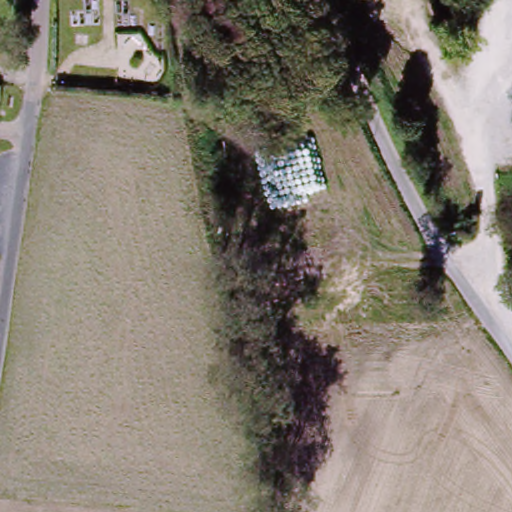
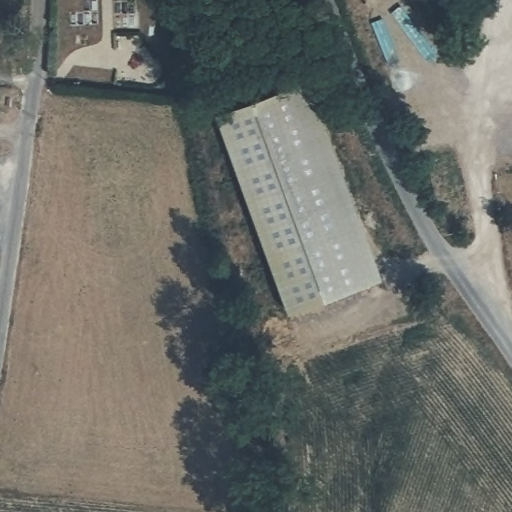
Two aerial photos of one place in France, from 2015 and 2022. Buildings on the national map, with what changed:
new [(290,86),(363,285),(291,312),(218,113),(290,86)]

